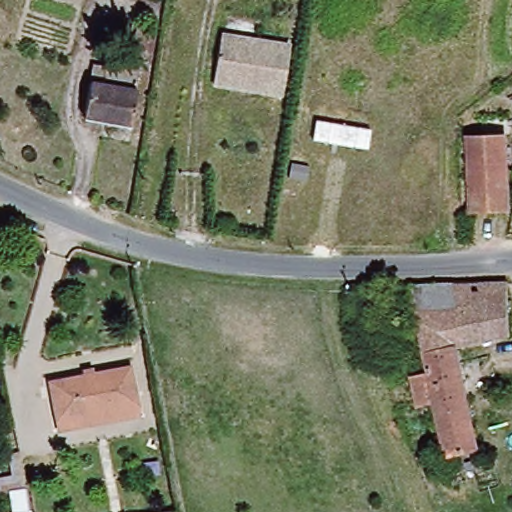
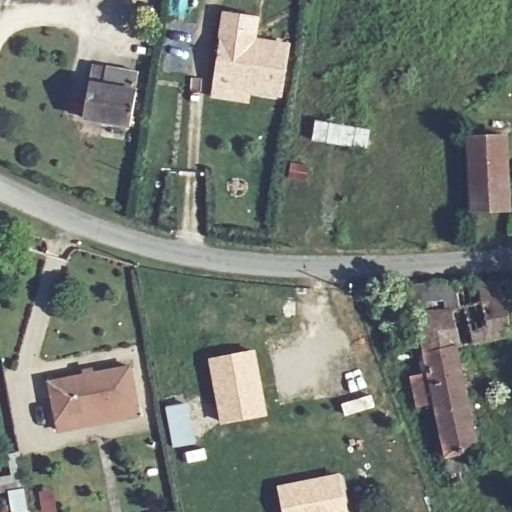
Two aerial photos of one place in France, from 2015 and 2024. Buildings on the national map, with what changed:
unchanged [(220,39),(289,49),(282,98),(213,86),(220,39)]
unchanged [(95,74),(141,83),(133,135),(87,127),(95,74)]
unchanged [(470,138),(504,135),(510,209),(474,210),(470,138)]
unchanged [(407,378),(427,372),(420,343),(396,349),(393,336),(417,330),(410,284),(506,279),(511,335),(456,346),(480,467),(459,472),(462,483),(452,484),(433,404),(420,407),(414,409),(409,383),(407,378)]
new [(260,414),(216,423),(204,359),(247,352),(260,414)]
unchanged [(56,433),(55,423),(47,383),(127,367),(135,408),(137,417),(56,433)]
new [(341,472),(350,512),(281,512),(275,484),(341,472)]
unchanged [(11,510),(6,492),(24,491),(27,512),(0,512),(11,510)]

